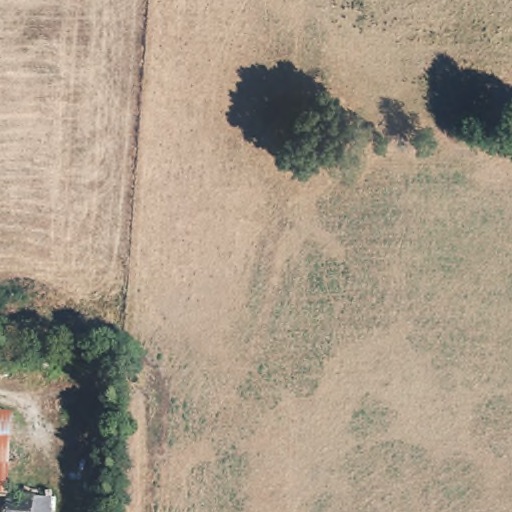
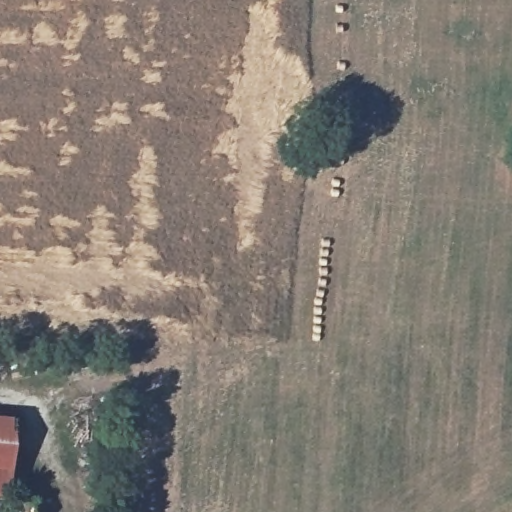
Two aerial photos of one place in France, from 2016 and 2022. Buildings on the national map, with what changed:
unchanged [(13,414),(9,498),(0,498),(0,413),(13,414)]

